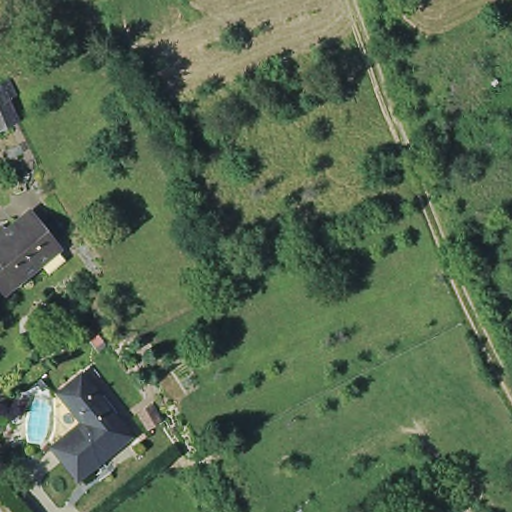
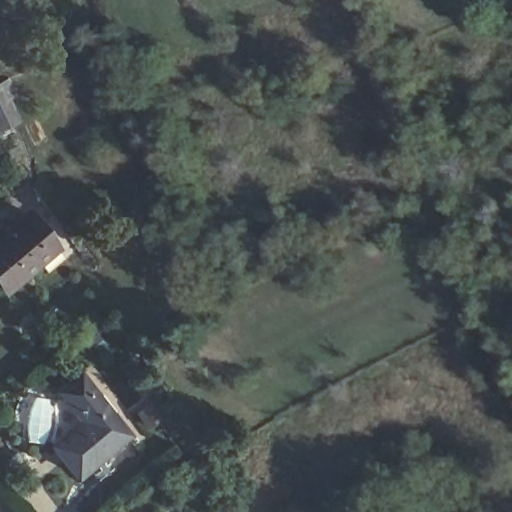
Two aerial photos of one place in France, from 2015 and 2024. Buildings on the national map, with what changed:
unchanged [(0,84),(5,95),(0,98),(0,84)]
unchanged [(0,127),(0,101),(10,122),(0,127)]
unchanged [(62,248),(10,289),(0,277),(0,240),(34,213),(62,248)]
unchanged [(122,440),(72,479),(48,449),(78,426),(54,396),(75,379),(122,440)]

